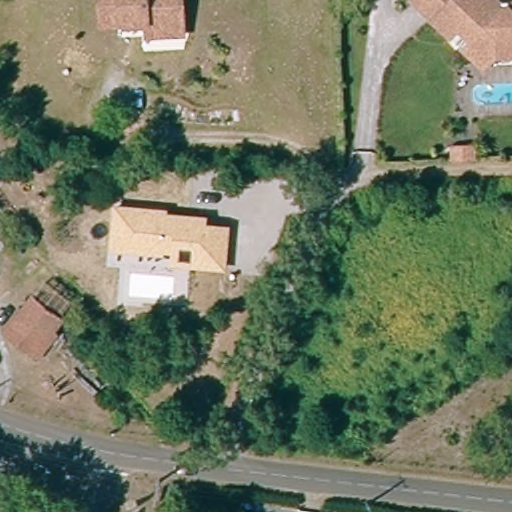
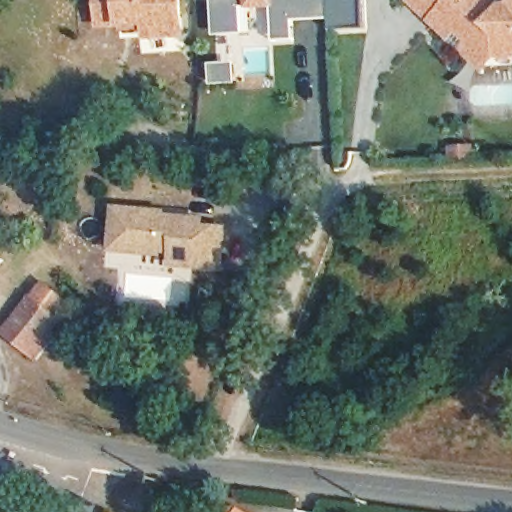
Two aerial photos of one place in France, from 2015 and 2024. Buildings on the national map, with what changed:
unchanged [(136,28),(136,14),(91,16),(90,0),(171,0),(172,26),(136,28)]
new [(275,41),(272,8),(253,9),(255,33),(215,35),(213,0),(364,0),(365,30),(331,30),(331,20),(295,23),(296,41),(275,41)]
unchanged [(467,41),(459,47),(443,33),(411,0),(492,0),(497,6),(507,7),(512,1),(512,53),(490,53),(482,58),(467,41)]
unchanged [(485,147),(486,163),(465,164),(464,148),(485,147)]
unchanged [(167,207),(167,211),(207,214),(207,222),(229,225),(226,268),(167,263),(169,254),(110,249),(114,202),(167,207)]
unchanged [(32,358),(4,338),(40,289),(65,308),(53,322),(57,326),(32,358)]
unchanged [(229,512),(234,504),(247,512),(229,512)]

